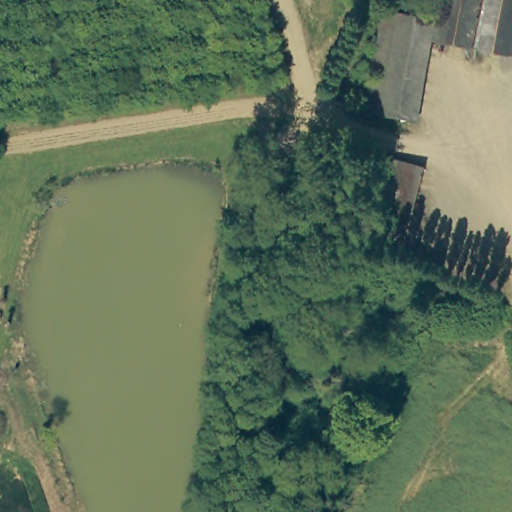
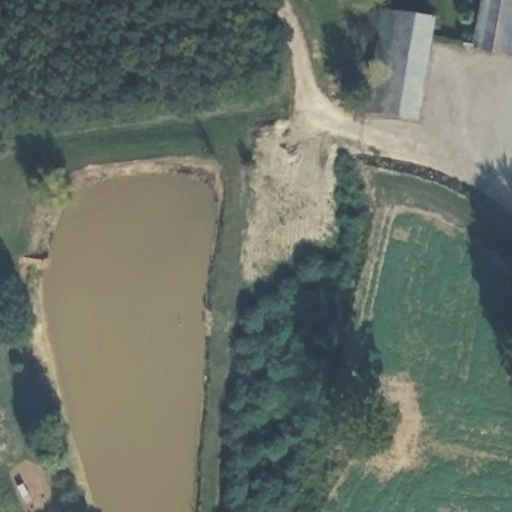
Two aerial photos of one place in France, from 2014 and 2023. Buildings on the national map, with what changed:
unchanged [(431,39),(435,20),(438,0),(512,0),(512,53),(431,39)]
unchanged [(435,20),(431,39),(416,119),(365,110),(382,11),(435,20)]
unchanged [(423,163),(415,211),(382,205),(390,157),(423,163)]

